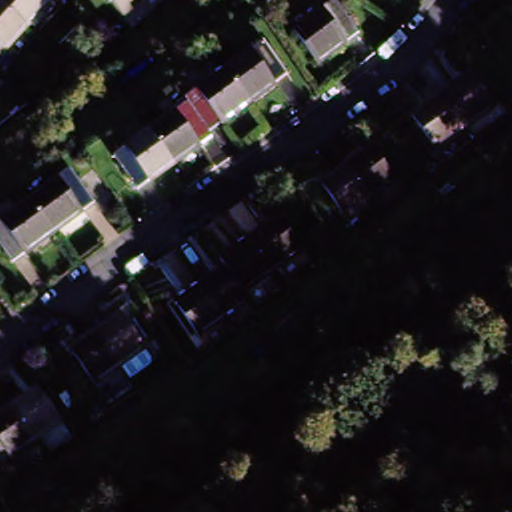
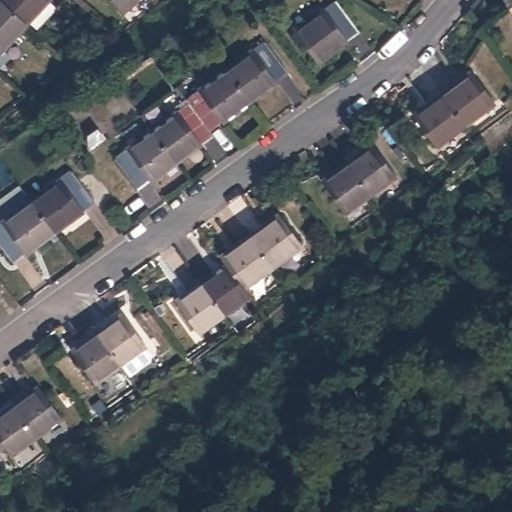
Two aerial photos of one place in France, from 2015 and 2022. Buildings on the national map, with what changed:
unchanged [(0,2),(0,0),(44,0),(22,23),(0,2)]
unchanged [(128,0),(142,0),(135,7),(128,0)]
unchanged [(0,48),(0,2),(22,23),(0,48)]
unchanged [(284,34),(314,12),(325,3),(349,37),(337,45),(307,67),(284,34)]
unchanged [(255,51),(277,82),(266,91),(241,109),(217,77),(242,59),(255,51)]
unchanged [(0,63),(0,53),(5,58),(0,63)]
unchanged [(439,97),(467,76),(490,107),(462,129),(439,97)]
unchanged [(176,107),(187,98),(217,77),(241,109),(211,131),(199,139),(202,144),(190,152),(165,171),(142,138),(167,119),(179,111),(176,107)]
unchanged [(431,151),(408,119),(439,97),(462,129),(431,151)]
unchanged [(104,165),(116,156),(142,138),(165,171),(140,190),(128,198),(104,165)]
unchanged [(342,166),(367,148),(390,180),(365,198),(342,166)]
unchanged [(340,218),(317,185),(342,166),(365,198),(340,218)]
unchanged [(65,178),(77,169),(100,202),(88,211),(59,231),(36,199),(65,178)]
unchanged [(0,225),(7,220),(36,199),(59,231),(30,252),(18,261),(0,236),(0,225)]
unchanged [(240,239),(269,218),(292,250),(264,271),(240,239)]
unchanged [(210,261),(240,239),(264,271),(234,294),(215,268),(210,261)]
unchanged [(215,268),(234,294),(239,300),(214,319),(190,287),(215,268)]
unchanged [(214,319),(188,337),(165,305),(190,287),(214,319)]
unchanged [(92,336),(117,317),(142,350),(116,369),(92,336)]
unchanged [(90,388),(66,356),(92,336),(116,369),(90,388)]
unchanged [(29,390),(52,423),(27,442),(10,418),(4,409),(29,390)]
unchanged [(10,418),(27,442),(2,460),(0,458),(0,412),(4,409),(10,418)]

